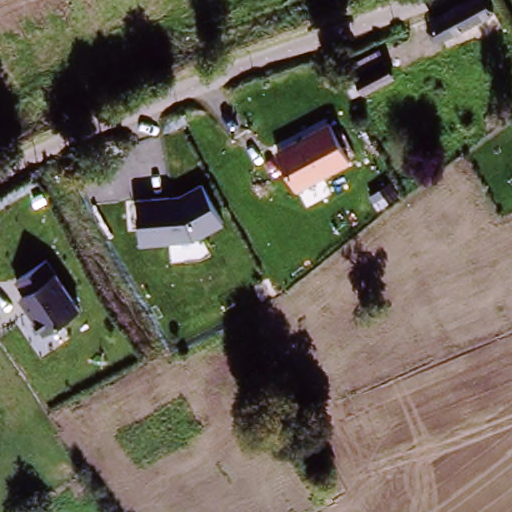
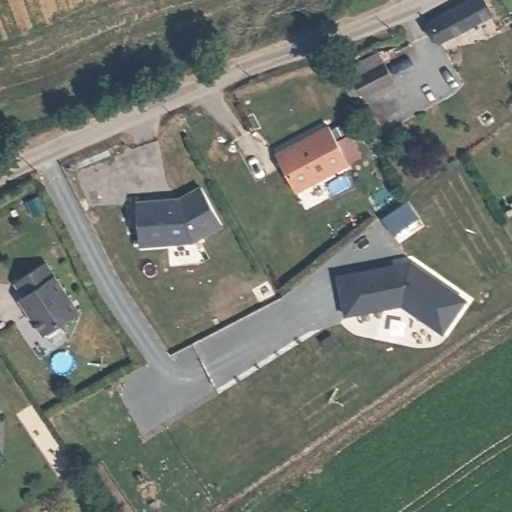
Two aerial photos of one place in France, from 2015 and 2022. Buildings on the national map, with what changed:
unchanged [(473,0),(481,0),(490,15),(440,44),(429,25),(473,0)]
unchanged [(386,51),(397,68),(367,87),(357,69),(386,51)]
unchanged [(328,128),(352,165),(297,194),(275,154),(328,128)]
unchanged [(135,202),(175,200),(202,186),(224,229),(193,244),(137,249),(135,202)]
new [(412,260),(470,300),(445,335),(403,306),(345,317),(336,275),(412,260)]
unchanged [(80,312),(41,337),(8,282),(45,262),(80,312)]

